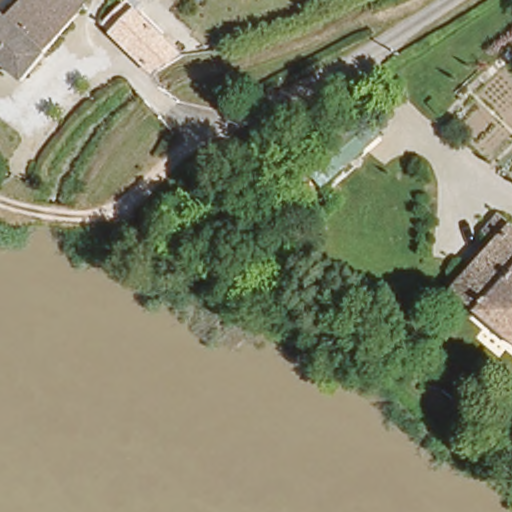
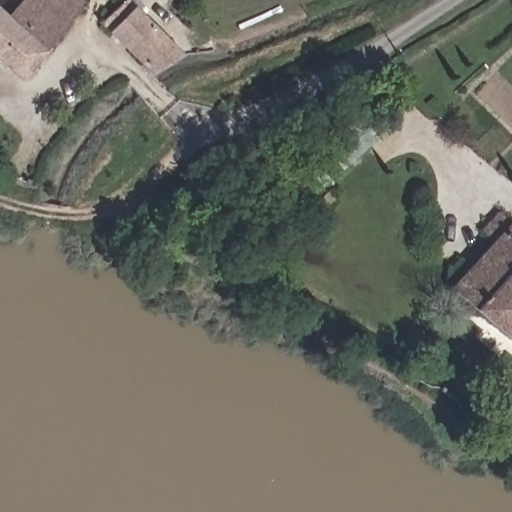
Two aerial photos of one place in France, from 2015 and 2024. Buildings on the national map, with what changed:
unchanged [(20,0),(81,0),(17,69),(0,53),(0,2),(10,11),(20,0)]
unchanged [(100,15),(116,0),(134,0),(178,48),(148,63),(100,15)]
unchanged [(308,164),(367,109),(384,126),(324,182),(308,164)]
unchanged [(489,245),(483,226),(499,206),(512,216),(512,333),(450,284),(489,245)]

